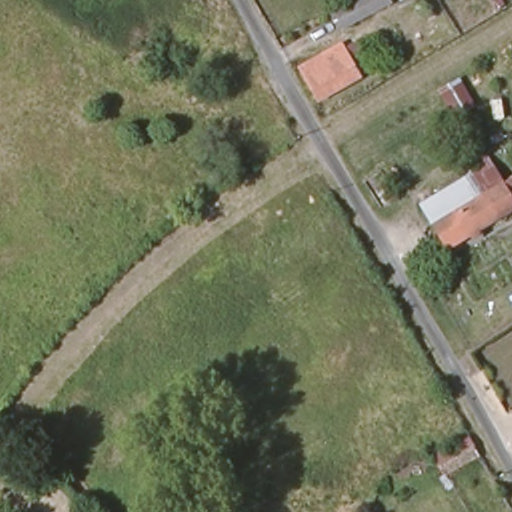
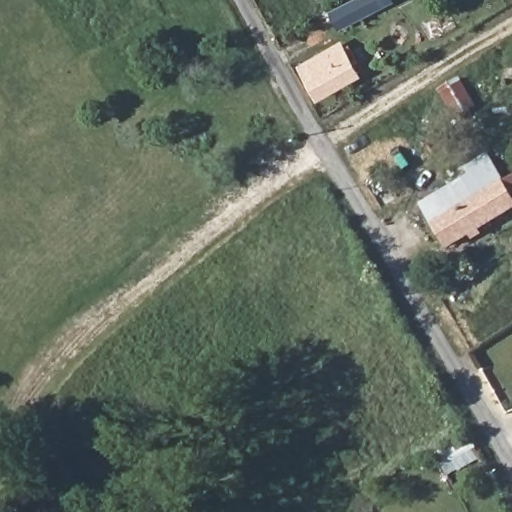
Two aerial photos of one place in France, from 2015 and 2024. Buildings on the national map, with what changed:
unchanged [(348,27),(339,11),(360,0),(394,0),(348,27)]
unchanged [(360,75),(321,95),(305,65),(343,45),(360,75)]
unchanged [(454,115),(439,88),(456,77),(473,104),(454,115)]
unchanged [(449,144),(440,125),(454,115),(464,135),(449,144)]
unchanged [(507,187),(512,185),(512,212),(450,250),(426,206),(442,197),(437,187),(466,170),(489,157),(507,187)]
unchanged [(477,453),(447,478),(433,459),(467,435),(477,453)]

